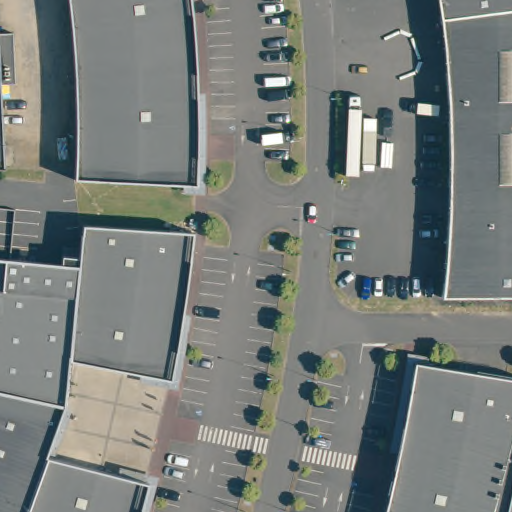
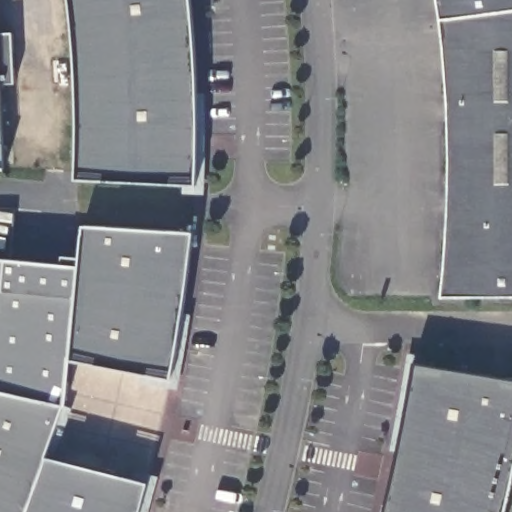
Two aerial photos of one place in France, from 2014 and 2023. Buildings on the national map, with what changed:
unchanged [(79,154),(79,126),(79,99),(77,71),(75,44),(73,17),(70,0),(192,0),(193,0),(196,27),(198,55),(199,82),(200,109),(200,137),(200,164),(199,187),(78,182),(78,181),(79,154)]
unchanged [(512,0),(512,6),(435,15),(433,0),(512,0)]
unchanged [(512,295),(441,295),(445,243),(446,194),(448,144),(441,69),(437,19),(512,10),(512,295)]
unchanged [(0,78),(0,28),(11,27),(13,77),(0,78)]
unchanged [(84,220),(195,228),(187,288),(182,317),(178,345),(172,376),(70,355),(70,353),(74,315),(81,253),(82,242),(84,220)]
unchanged [(81,253),(74,315),(70,353),(70,355),(65,401),(0,386),(0,252),(62,258),(64,241),(82,242),(81,253)]
unchanged [(504,512),(382,512),(384,506),(390,480),(396,453),(401,426),(407,399),(411,372),(413,364),(512,381),(512,477),(506,504),(504,512)]
unchanged [(47,451),(28,502),(24,512),(0,512),(0,386),(65,401),(47,451)]
unchanged [(28,502),(47,451),(152,479),(149,490),(143,512),(24,512),(28,502)]

